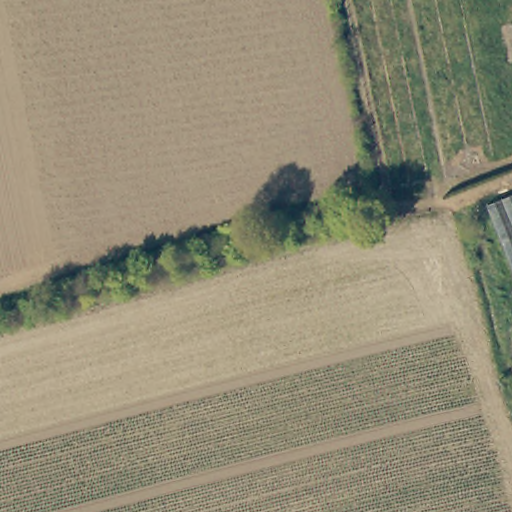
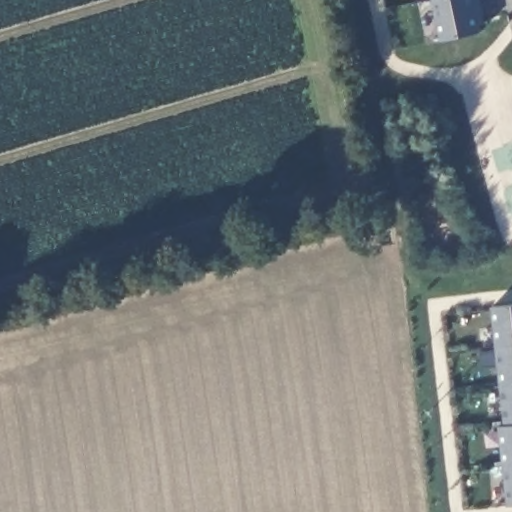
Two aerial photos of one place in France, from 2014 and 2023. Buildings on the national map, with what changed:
new [(485,22),(478,25),(480,33),(442,40),(433,0),(480,0),(485,22)]
new [(512,304),(512,505),(507,506),(497,426),(503,425),(491,306),(512,304)]

